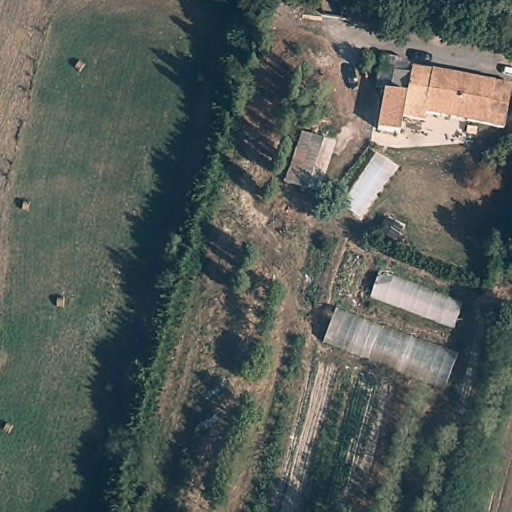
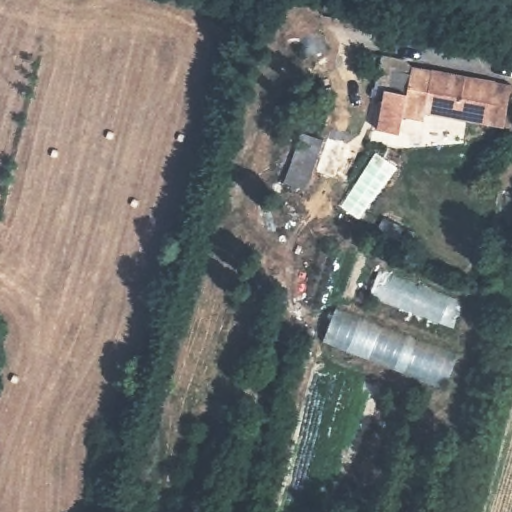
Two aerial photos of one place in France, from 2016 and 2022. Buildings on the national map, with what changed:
unchanged [(512,78),(512,125),(435,112),(435,119),(411,115),(416,86),(400,83),(401,62),(420,65),(420,62),(512,78)]

